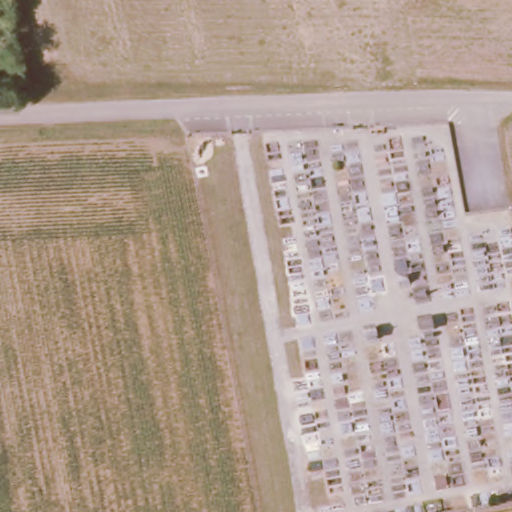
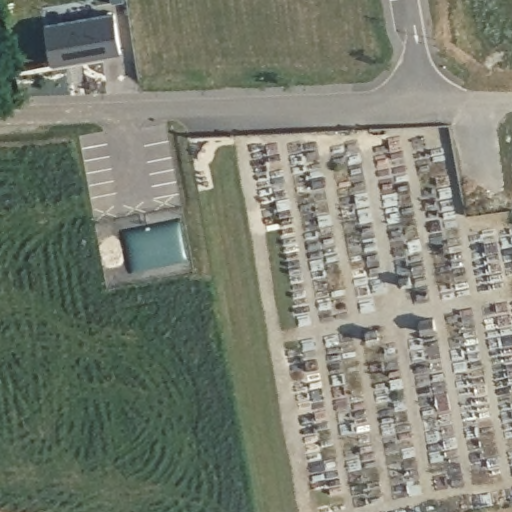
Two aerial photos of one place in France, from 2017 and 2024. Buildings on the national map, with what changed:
new [(113,14),(119,52),(47,65),(40,27),(113,14)]

